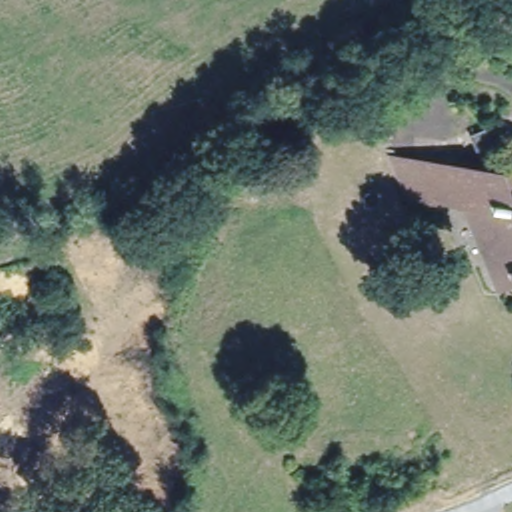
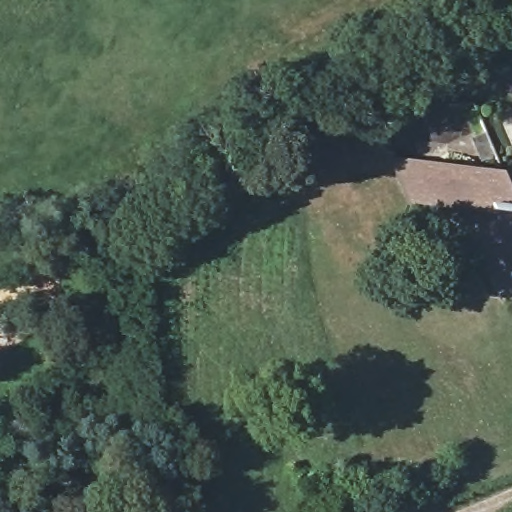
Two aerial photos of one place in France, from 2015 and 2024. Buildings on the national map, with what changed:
unchanged [(489,133),(500,155),(483,162),(473,140),(489,133)]
unchanged [(511,285),(507,278),(496,282),(470,219),(438,210),(409,201),(393,163),(472,174),(505,177),(512,174),(512,284),(511,285)]

